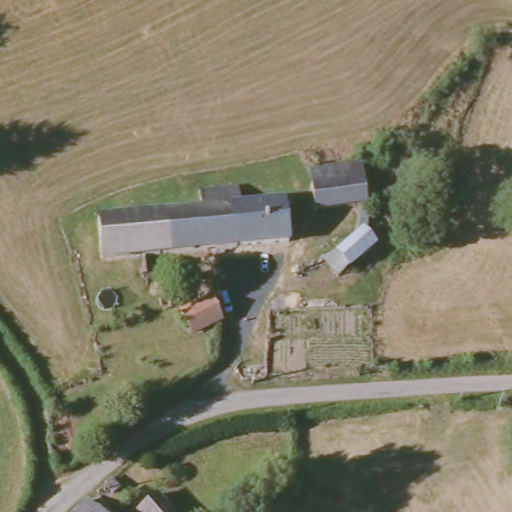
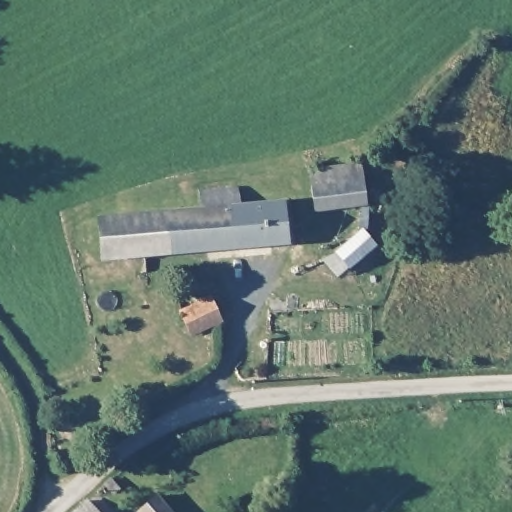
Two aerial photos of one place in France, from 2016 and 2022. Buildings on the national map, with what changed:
unchanged [(367,212),(317,218),(312,176),(363,171),(367,212)]
unchanged [(242,212),(286,208),(288,250),(145,261),(101,265),(99,224),(201,215),(200,197),(240,194),(242,212)]
unchanged [(377,243),(340,275),(326,258),(337,254),(365,231),(377,243)]
unchanged [(223,319),(195,333),(185,311),(214,296),(223,319)]
unchanged [(166,509),(168,512),(137,512),(133,507),(151,492),(160,484),(175,501),(166,509)]
unchanged [(78,512),(89,501),(99,512),(78,512)]

